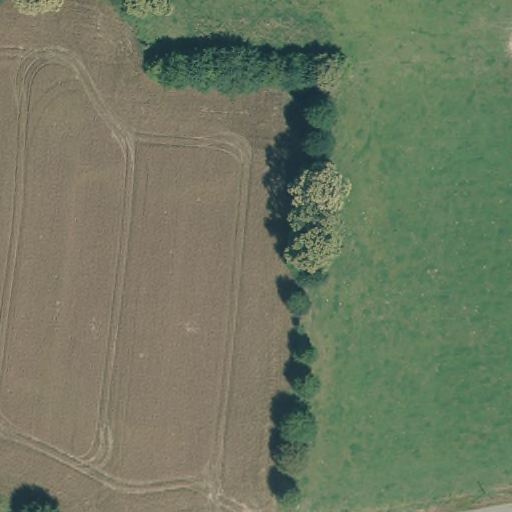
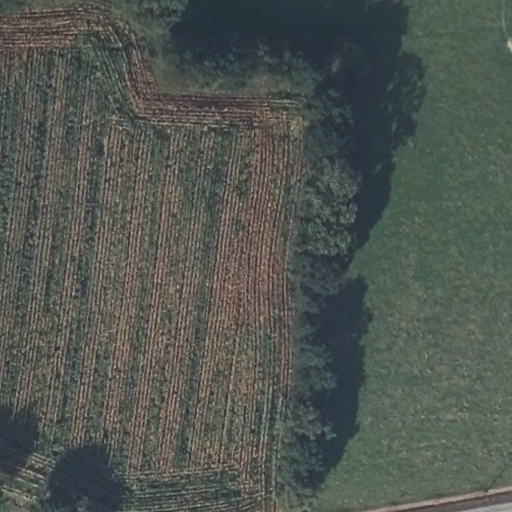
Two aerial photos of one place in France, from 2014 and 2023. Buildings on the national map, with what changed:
[]

